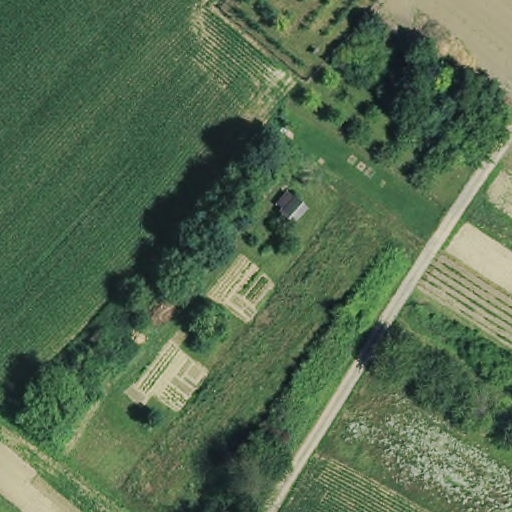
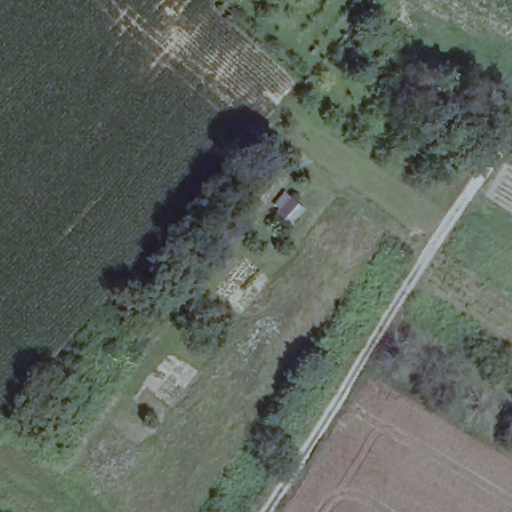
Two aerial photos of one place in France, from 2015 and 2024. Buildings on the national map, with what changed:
unchanged [(295,224),(276,205),(291,190),(310,206),(295,224)]

